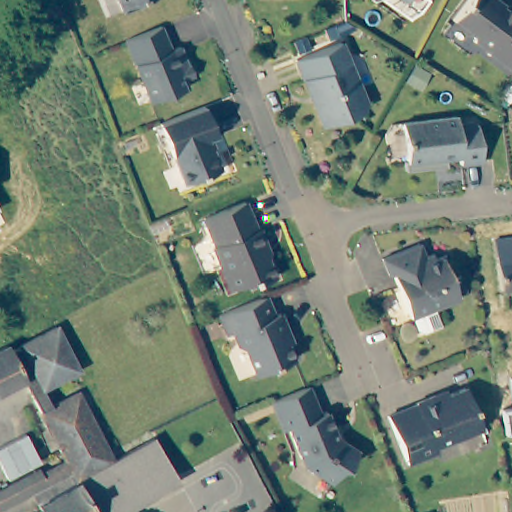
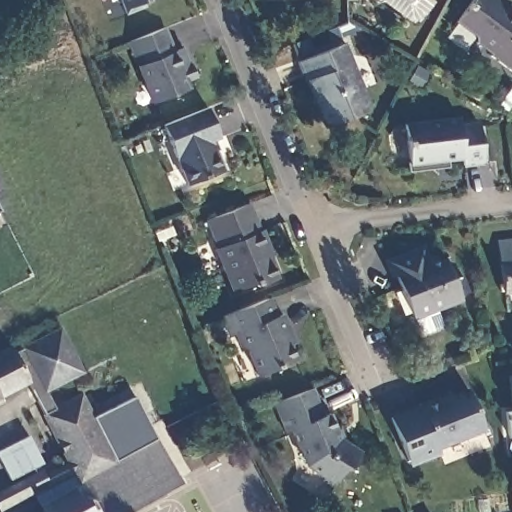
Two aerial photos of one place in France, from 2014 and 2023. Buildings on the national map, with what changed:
unchanged [(146,4),(127,12),(121,0),(145,0),(146,4)]
unchanged [(413,5),(407,0),(417,0),(413,5)]
unchanged [(512,10),(512,68),(491,54),(492,51),(477,40),(475,32),(457,19),(472,0),(499,0),(512,10)]
unchanged [(180,50),(189,46),(196,64),(187,67),(195,87),(160,101),(134,39),(170,25),(180,50)]
unchanged [(373,106),(371,112),(331,128),(304,62),(348,45),(373,106)]
unchanged [(422,87),(408,80),(417,63),(431,71),(422,87)]
unchanged [(221,135),(212,139),(225,169),(189,184),(163,123),(209,106),(221,135)]
unchanged [(461,122),(477,121),(481,124),(485,160),(464,162),(463,156),(411,162),(407,122),(460,115),(461,122)]
unchanged [(261,229),(262,228),(268,242),(267,249),(277,277),(260,284),(254,282),(235,290),(217,247),(220,246),(209,218),(249,202),(261,229)]
unchanged [(498,241),(512,239),(512,290),(505,291),(498,241)]
unchanged [(470,293),(461,297),(462,302),(415,322),(397,277),(394,279),(387,262),(424,247),(430,261),(437,257),(439,263),(446,260),(455,283),(465,280),(470,293)]
unchanged [(277,315),(283,312),(291,330),(286,332),(297,358),(259,373),(250,351),(243,347),(237,332),(231,335),(223,315),(270,296),(277,315)]
unchanged [(158,488),(116,512),(38,512),(40,511),(35,504),(30,494),(0,508),(0,488),(35,472),(37,475),(62,462),(39,413),(25,387),(22,382),(7,352),(54,329),(67,357),(74,370),(40,388),(50,407),(76,395),(111,462),(139,447),(152,439),(174,479),(158,488)]
unchanged [(0,393),(0,348),(5,346),(7,352),(22,382),(0,393)]
unchanged [(315,387),(325,415),(332,412),(341,437),(363,447),(355,467),(348,469),(340,487),(315,477),(316,472),(307,468),(296,439),(291,441),(276,402),(315,387)]
unchanged [(490,432),(444,451),(446,456),(416,468),(397,421),(425,409),(424,407),(444,399),(446,404),(474,392),(490,432)]
new [(135,394),(152,439),(139,447),(111,462),(107,456),(92,426),(89,418),(135,394)]
unchanged [(505,412),(512,411),(512,435),(508,435),(505,412)]
unchanged [(8,479),(0,462),(0,449),(29,435),(42,462),(8,479)]

